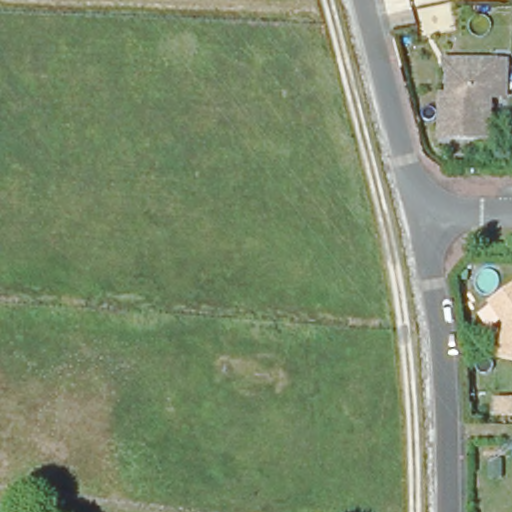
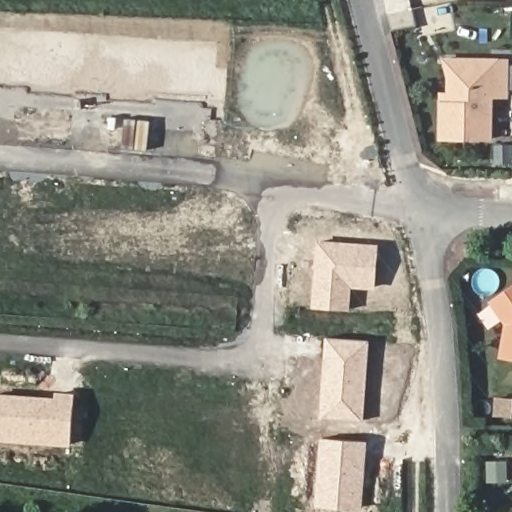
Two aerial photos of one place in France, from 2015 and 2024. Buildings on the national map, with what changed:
unchanged [(440,58),(489,59),(505,59),(505,95),(490,95),(489,138),(439,136),(440,100),(440,93),(447,93),(448,79),(440,58)]
new [(318,240),(379,244),(375,289),(352,288),(350,310),(312,308),(318,240)]
unchanged [(490,303),(512,290),(512,365),(497,362),(502,342),(506,325),(503,323),(490,303)]
new [(370,340),(364,421),(319,418),(326,337),(370,340)]
new [(55,397),(56,392),(74,394),(71,446),(0,441),(0,393),(55,397)]
unchanged [(512,414),(495,413),(495,397),(512,397),(512,414)]
new [(367,441),(362,509),(316,506),(321,437),(367,441)]

